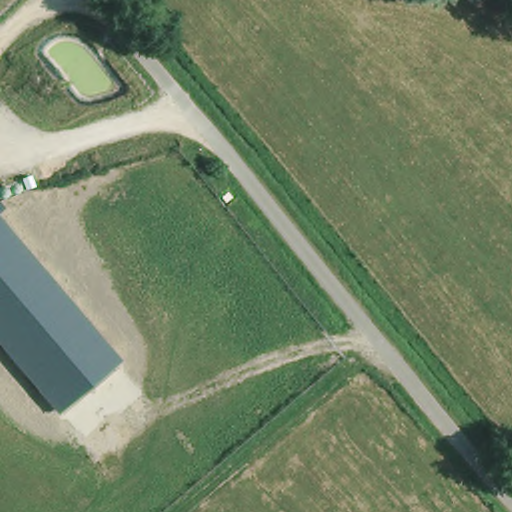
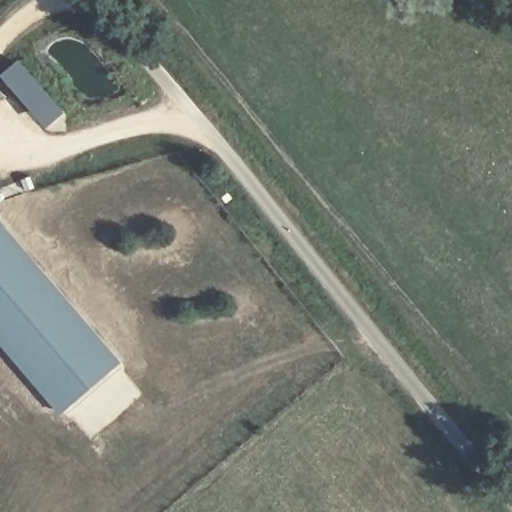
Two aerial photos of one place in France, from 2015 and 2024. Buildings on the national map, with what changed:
new [(62,109),(42,126),(0,73),(0,69),(17,56),(62,109)]
unchanged [(0,205),(4,210),(0,213),(0,205)]
unchanged [(122,362),(62,415),(0,343),(0,217),(122,362)]

